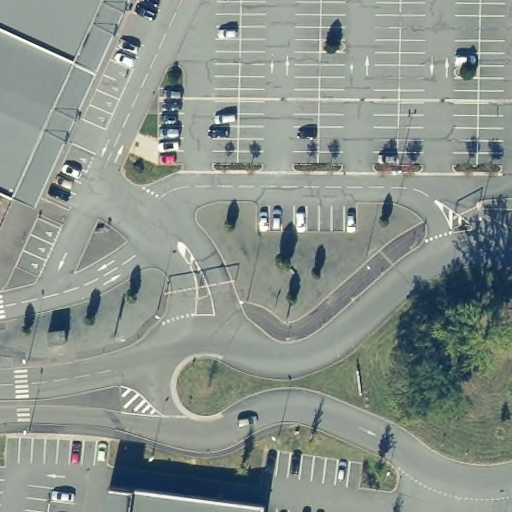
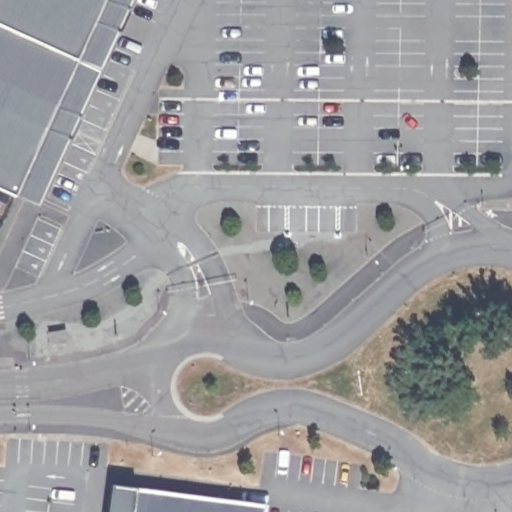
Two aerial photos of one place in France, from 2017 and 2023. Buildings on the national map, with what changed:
unchanged [(0,192),(0,0),(130,0),(37,208),(0,192)]
unchanged [(112,488),(135,489),(264,506),(263,512),(108,512),(112,488)]

